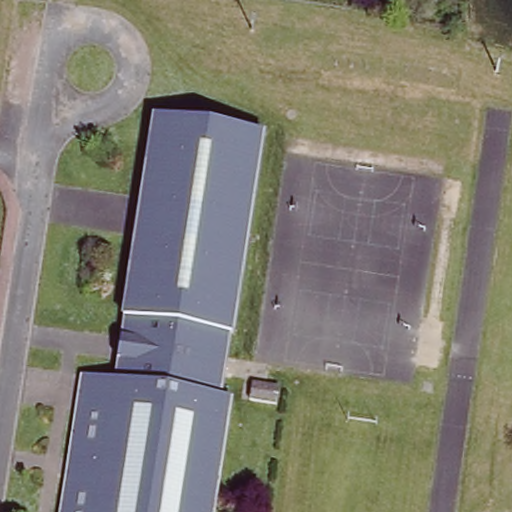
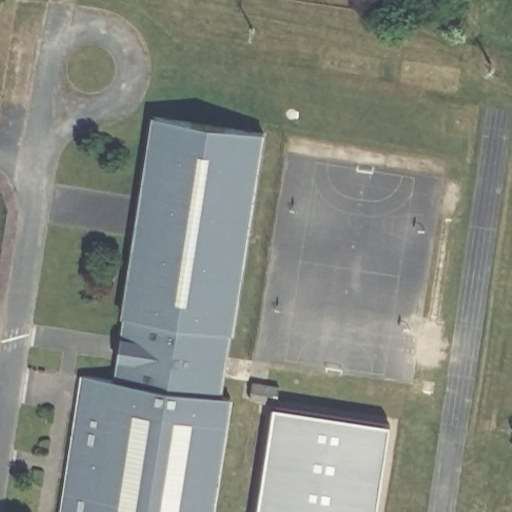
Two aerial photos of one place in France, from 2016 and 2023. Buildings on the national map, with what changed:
unchanged [(156,116),(265,133),(233,332),(230,332),(220,397),(233,399),(215,512),(62,512),(83,375),(115,378),(156,116)]
unchanged [(251,399),(255,383),(281,390),(278,405),(251,399)]
new [(390,425),(375,512),(258,512),(274,408),(390,425)]

